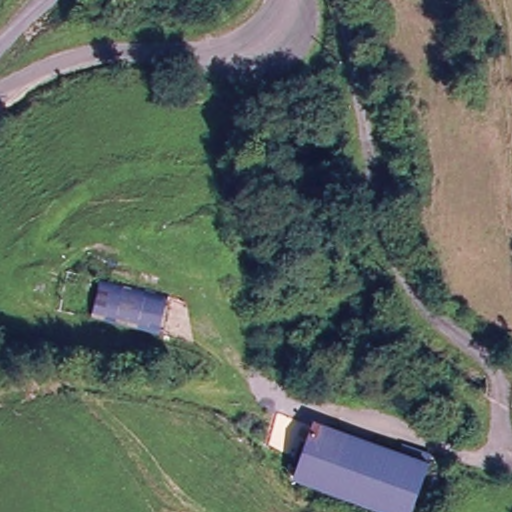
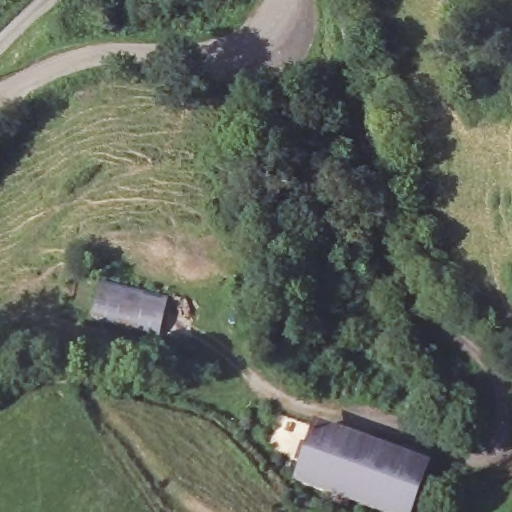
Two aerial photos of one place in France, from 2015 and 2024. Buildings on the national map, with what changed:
unchanged [(71,272),(168,296),(158,335),(61,310),(71,272)]
unchanged [(312,431),(345,428),(429,461),(420,483),(409,512),(384,512),(375,508),(320,487),(294,477),(296,471),(312,431)]

